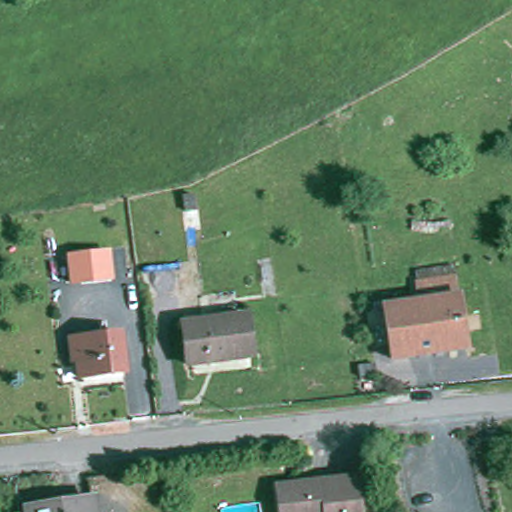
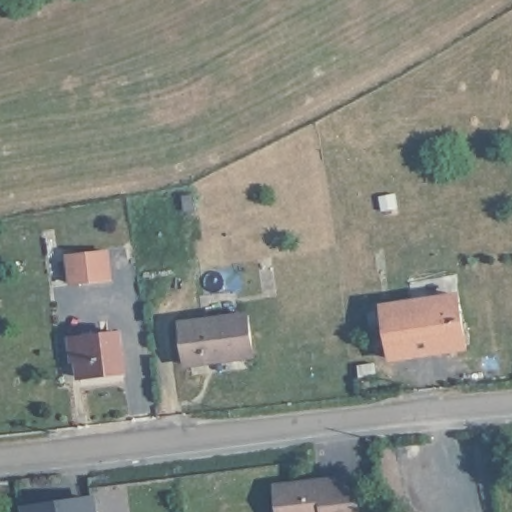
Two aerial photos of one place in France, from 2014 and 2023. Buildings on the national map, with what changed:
unchanged [(184,197),(193,196),(195,211),(186,212),(184,197)]
unchanged [(110,249),(114,282),(69,288),(66,255),(110,249)]
unchanged [(467,349),(392,360),(385,307),(420,302),(459,296),(467,349)]
unchanged [(182,324),(248,316),(253,357),(187,366),(182,324)]
unchanged [(125,373),(80,378),(78,360),(72,361),(69,340),(85,338),(121,334),(125,373)]
unchanged [(376,376),(360,378),(359,367),(375,365),(376,376)]
unchanged [(277,482),(356,474),(360,512),(280,512),(277,482)]
unchanged [(31,510),(98,500),(100,512),(31,512),(31,510)]

